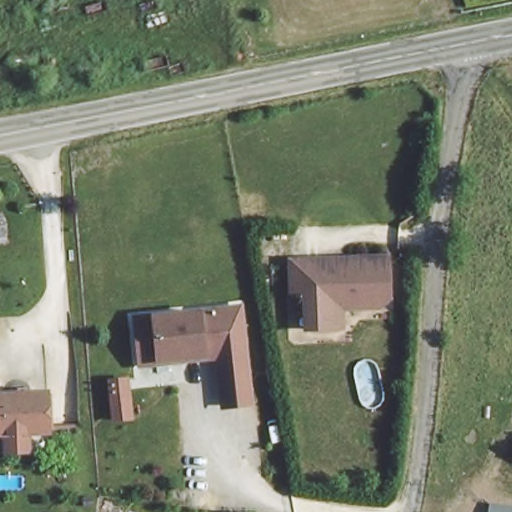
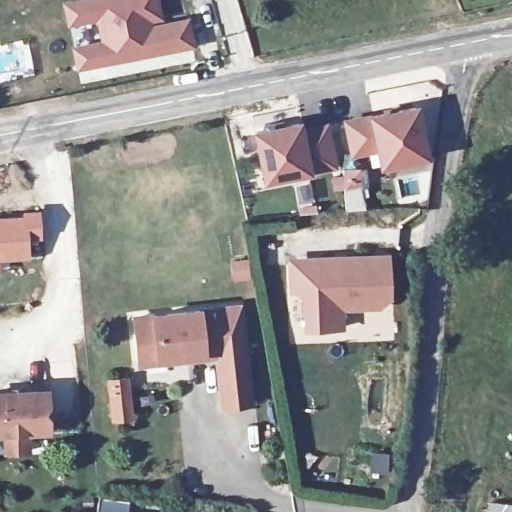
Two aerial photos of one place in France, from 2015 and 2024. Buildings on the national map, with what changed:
new [(74,0),(160,0),(164,21),(189,17),(196,48),(76,71),(71,46),(100,40),(96,22),(67,27),(62,2),(74,0)]
new [(366,115),(419,102),(431,161),(379,174),(375,151),(349,157),(342,120),(366,115)]
new [(303,120),(304,126),(329,121),(337,170),(312,175),(262,185),(252,131),(303,120)]
new [(7,215),(40,209),(43,237),(28,239),(30,257),(1,260),(0,266),(0,215),(7,215)]
unchanged [(285,295),(283,269),(312,267),(317,262),(384,257),(386,295),(386,308),(357,311),(342,312),(342,328),(298,332),(298,322),(286,322),(285,295)]
unchanged [(243,308),(252,403),(227,405),(223,356),(145,365),(140,320),(243,308)]
new [(131,378),(135,422),(112,423),(108,380),(131,378)]
unchanged [(29,452),(8,452),(6,435),(0,435),(0,396),(49,395),(50,432),(30,433),(29,452)]
new [(512,505),(512,512),(488,512),(489,502),(512,505)]

